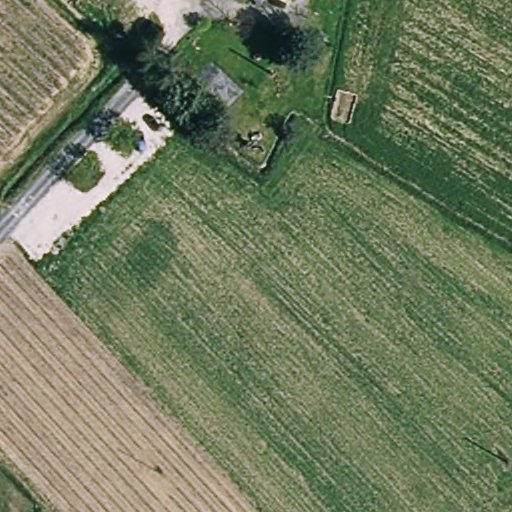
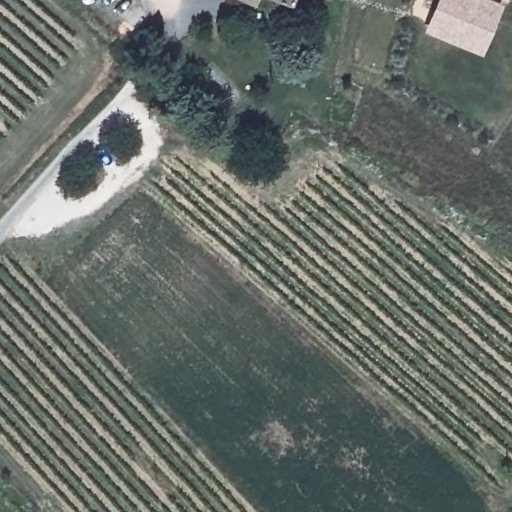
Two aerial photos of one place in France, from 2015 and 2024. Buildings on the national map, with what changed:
unchanged [(270,10),(268,14),(233,0),(304,0),(299,14),(289,10),(285,17),(270,10)]
new [(483,54),(424,29),(436,0),(497,0),(504,3),(483,54)]

